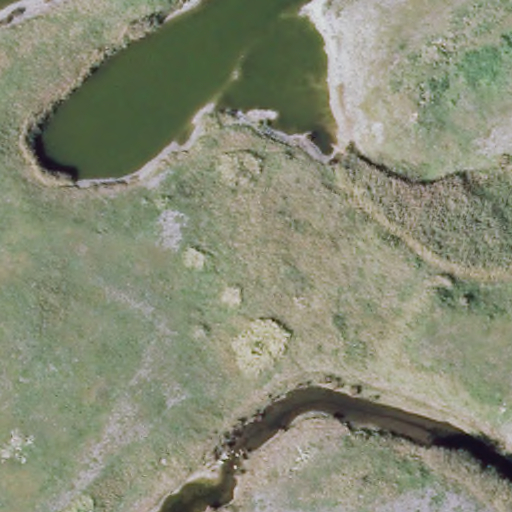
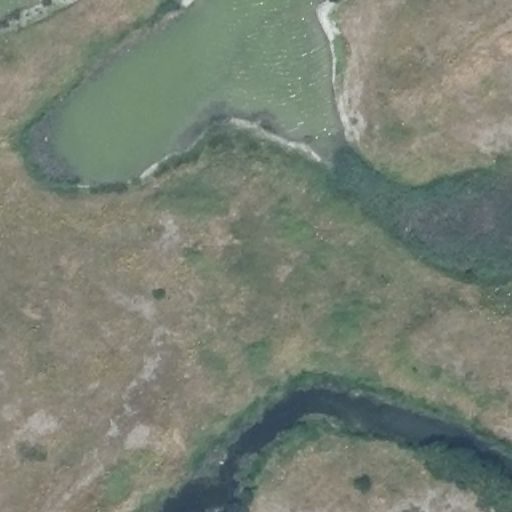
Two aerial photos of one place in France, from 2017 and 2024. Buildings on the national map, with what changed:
unchanged [(470,512),(512,479),(512,512),(470,512)]

